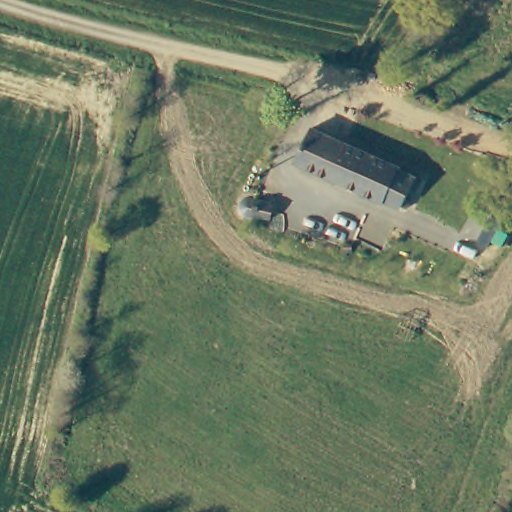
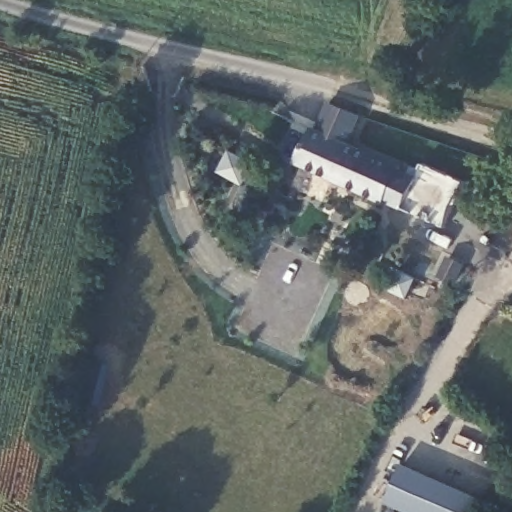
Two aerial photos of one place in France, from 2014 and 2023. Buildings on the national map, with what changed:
unchanged [(406,172),(417,177),(402,210),(299,162),(320,123),(410,165),(406,172)]
new [(398,272),(417,281),(408,300),(390,292),(398,272)]
new [(385,502),(401,464),(487,501),(482,512),(407,512),(385,502)]

